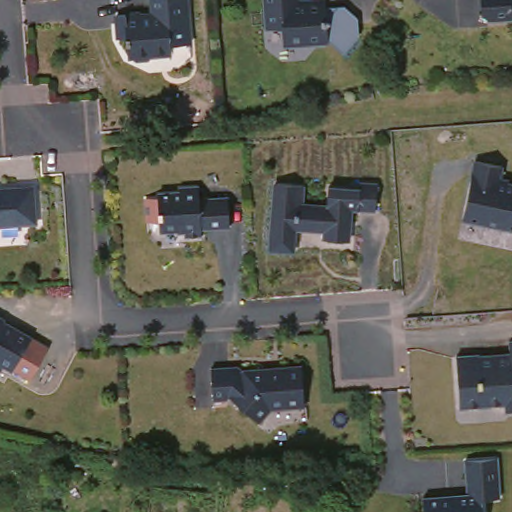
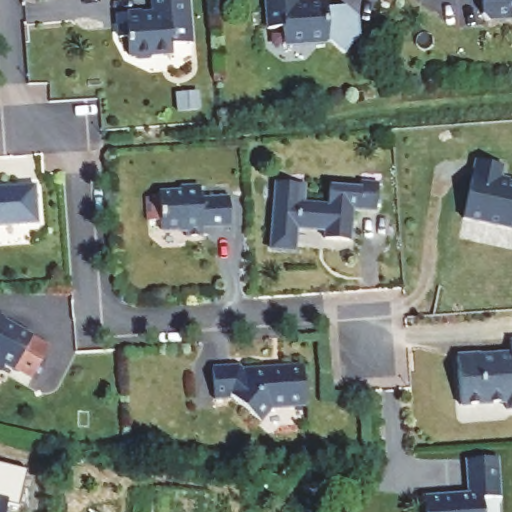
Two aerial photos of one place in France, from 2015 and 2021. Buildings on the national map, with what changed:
unchanged [(196,39),(178,41),(178,48),(160,50),(156,54),(141,55),(138,51),(136,51),(134,33),(126,33),(123,11),(147,9),(148,13),(160,12),(159,0),(194,0),(196,39)]
unchanged [(301,2),(322,0),(329,0),(331,36),(286,39),(284,24),(269,25),(268,0),(301,0),(301,2)]
unchanged [(483,16),(482,0),(512,0),(512,18),(488,20),(483,16)]
unchanged [(506,163),(502,177),(512,179),(512,225),(465,215),(478,157),(506,163)]
unchanged [(305,183),(303,202),(328,204),(330,185),(361,188),(361,181),(380,182),(378,209),(353,207),(351,240),(326,238),(326,229),(296,227),(294,249),(271,248),(276,181),(305,183)]
unchanged [(199,184),(200,197),(228,195),(230,225),(201,226),(202,234),(186,235),(185,227),(161,229),(160,219),(148,219),(146,196),(159,195),(158,191),(180,190),(179,185),(199,184)]
unchanged [(31,186),(33,223),(0,224),(0,187),(31,186)]
unchanged [(36,334),(35,335),(53,345),(35,376),(18,366),(18,367),(8,362),(4,369),(0,366),(0,314),(36,334)]
unchanged [(463,355),(486,354),(486,355),(512,353),(512,402),(466,405),(463,355)]
unchanged [(246,372),(281,369),(281,365),(301,363),(305,403),(271,406),(259,419),(229,393),(223,398),(210,399),(207,367),(233,365),(246,372)]
unchanged [(502,495),(484,496),(485,512),(427,512),(426,495),(469,492),(466,457),(499,455),(502,495)]
new [(18,506),(8,504),(5,512),(0,512),(0,464),(26,470),(18,506)]

